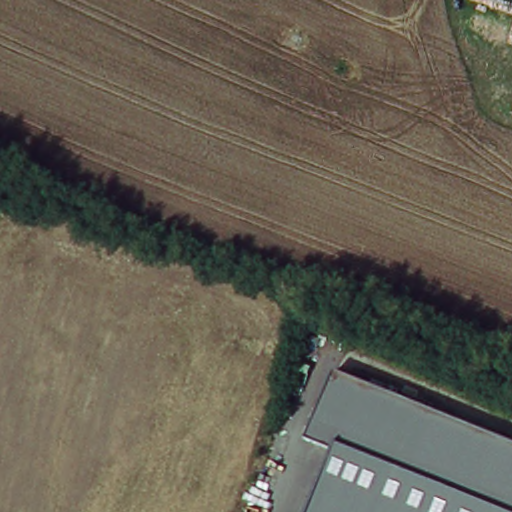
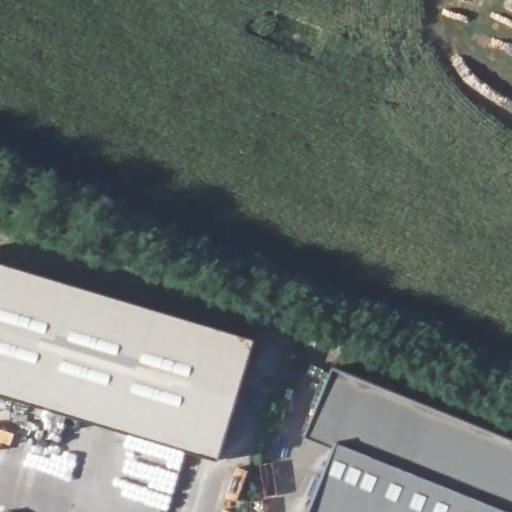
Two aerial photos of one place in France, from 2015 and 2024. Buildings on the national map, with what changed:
new [(217,460),(0,395),(0,264),(254,339),(217,460)]
unchanged [(512,441),(512,512),(310,512),(336,447),(308,438),(336,369),(512,441)]

